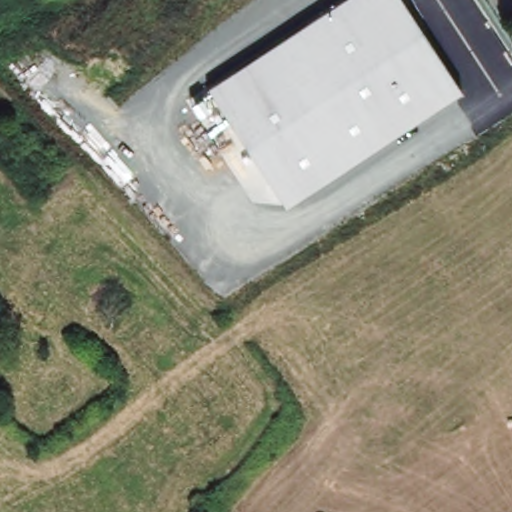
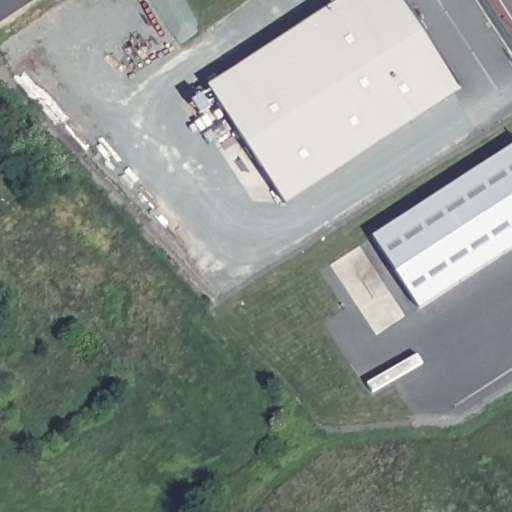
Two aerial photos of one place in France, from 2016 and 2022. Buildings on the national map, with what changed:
unchanged [(340,0),(401,0),(461,91),(284,205),(205,87),(340,0)]
new [(512,251),(420,310),(374,238),(512,150),(512,251)]

